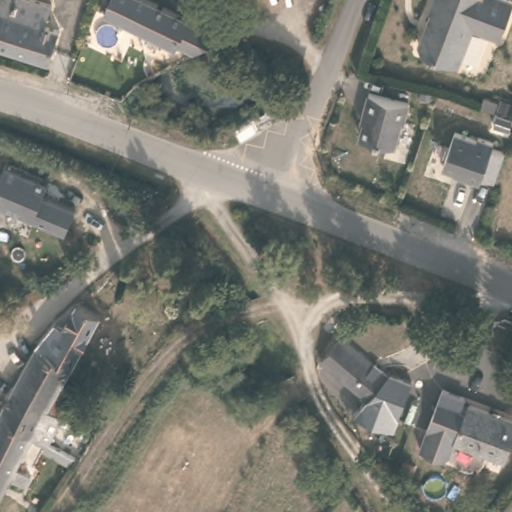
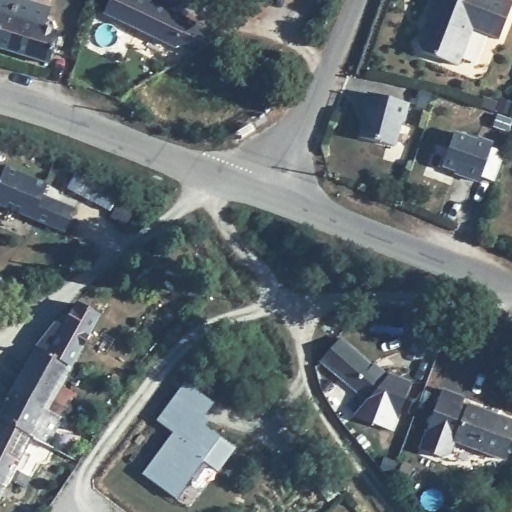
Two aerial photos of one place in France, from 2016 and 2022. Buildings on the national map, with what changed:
unchanged [(21,51),(0,44),(0,0),(46,0),(52,2),(45,24),(58,28),(49,59),(21,51)]
unchanged [(183,27),(171,52),(99,19),(108,0),(126,0),(183,27)]
unchanged [(500,46),(472,38),(461,74),(419,61),(416,52),(416,47),(428,38),(429,32),(424,29),(432,0),(472,0),(483,4),(485,0),(494,0),(512,6),(500,46)]
unchanged [(409,105),(405,123),(403,122),(396,147),(361,139),(368,114),(365,113),(370,95),(409,105)]
unchanged [(492,176),(479,172),(477,177),(461,172),(462,169),(440,162),(451,127),(474,135),(474,132),(490,137),(488,143),(502,147),(492,176)]
unchanged [(48,184),(44,195),(43,196),(44,196),(75,209),(65,232),(41,222),(0,204),(0,182),(6,167),(23,174),(48,184)]
unchanged [(14,385),(31,354),(37,342),(54,320),(64,325),(78,300),(99,312),(61,381),(76,390),(63,415),(14,385)]
unchanged [(342,340),(391,382),(372,405),(321,363),(342,340)]
new [(394,432),(373,425),(383,392),(391,382),(374,367),(375,364),(390,375),(411,383),(394,432)]
new [(219,472),(204,462),(175,500),(142,474),(173,433),(156,421),(185,382),(215,402),(204,416),(209,420),(204,426),(236,448),(219,472)]
unchanged [(2,416),(0,415),(0,412),(14,385),(63,415),(49,441),(35,433),(2,416)]
unchanged [(460,400),(457,409),(463,411),(464,406),(512,423),(512,426),(499,461),(451,443),(446,457),(439,461),(416,451),(438,392),(460,400)]
unchanged [(29,473),(25,482),(12,475),(0,496),(0,419),(2,416),(35,433),(16,467),(29,473)]
unchanged [(402,472),(395,478),(381,466),(388,460),(402,472)]

